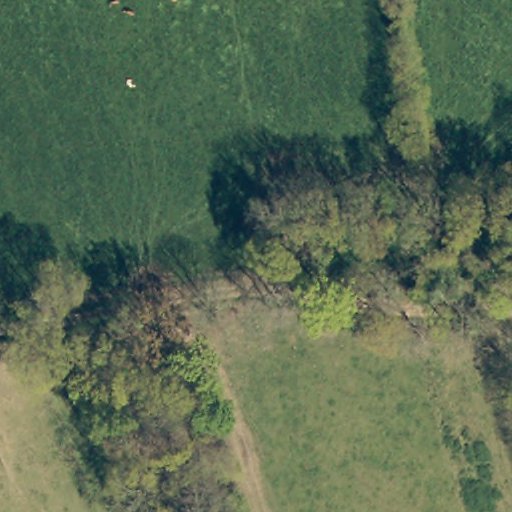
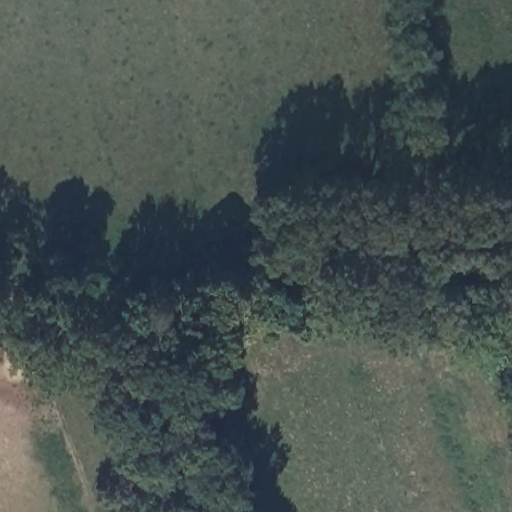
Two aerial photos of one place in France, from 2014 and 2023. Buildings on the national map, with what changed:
[]

